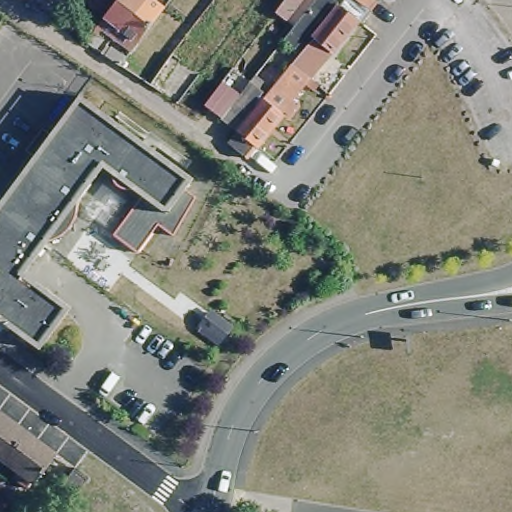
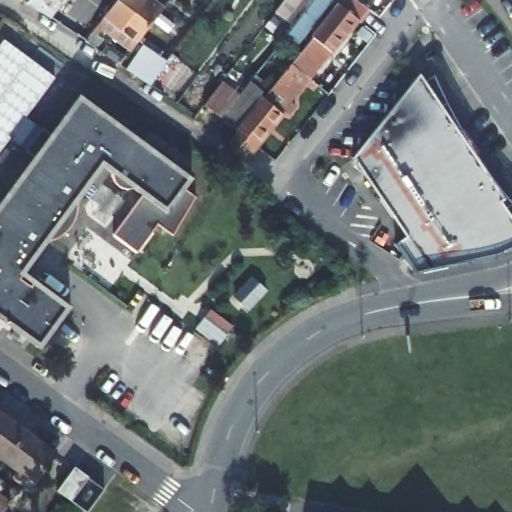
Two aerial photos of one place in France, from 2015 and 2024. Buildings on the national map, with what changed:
unchanged [(26,2),(23,0),(62,0),(47,18),(26,2)]
demolished [(113,0),(111,3),(104,13),(101,16),(78,0),(113,0)]
unchanged [(111,36),(118,27),(103,16),(110,8),(116,0),(155,0),(163,6),(158,12),(132,47),(130,50),(111,36)]
unchanged [(274,12),(283,0),(302,0),(285,21),(274,12)]
unchanged [(300,32),(289,46),(282,41),(297,21),(314,0),(329,0),(302,33),(300,32)]
unchanged [(341,0),(373,0),(375,1),(367,11),(362,17),(359,15),(340,39),(307,80),(289,65),(301,50),(341,0)]
new [(26,118),(39,128),(25,147),(11,137),(0,153),(0,44),(3,39),(56,78),(26,118)]
unchanged [(107,48),(110,46),(124,57),(117,65),(100,52),(104,46),(107,48)]
unchanged [(270,127),(256,146),(257,147),(250,157),(229,140),(236,131),(289,65),(307,80),(270,127)]
unchanged [(254,76),(261,82),(257,88),(261,92),(233,129),(220,118),(202,105),(226,74),(231,68),(249,82),(252,78),(254,76)]
new [(444,95),(512,211),(512,243),(417,269),(396,240),(410,232),(347,153),(426,68),(444,95)]
unchanged [(112,176),(111,169),(102,163),(76,200),(76,205),(75,214),(71,222),(62,230),(53,234),(48,236),(25,269),(71,303),(39,345),(0,317),(0,197),(33,152),(25,147),(42,125),(49,130),(79,91),(163,153),(192,174),(184,186),(195,193),(172,230),(157,220),(137,247),(112,230),(142,192),(131,184),(125,185),(117,182),(114,179),(112,176)]
unchanged [(12,447),(4,458),(0,456),(0,410),(25,429),(12,447)]
unchanged [(12,447),(25,429),(55,451),(27,489),(19,482),(1,507),(2,508),(0,512),(0,463),(4,458),(12,447)]
demolished [(87,480),(74,500),(60,489),(67,480),(74,470),(87,480)]
new [(87,512),(81,512),(70,504),(74,500),(60,489),(67,480),(74,470),(87,480),(102,491),(87,512)]

